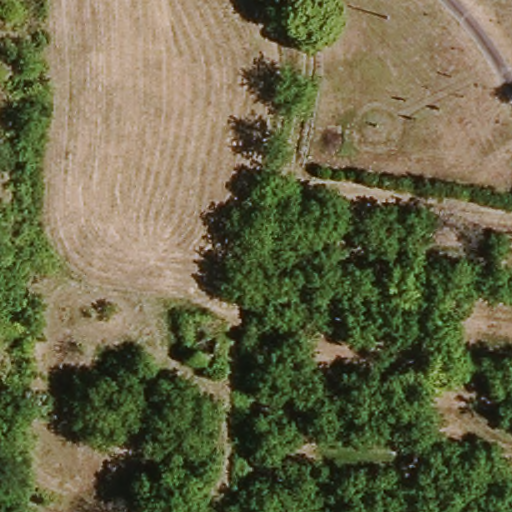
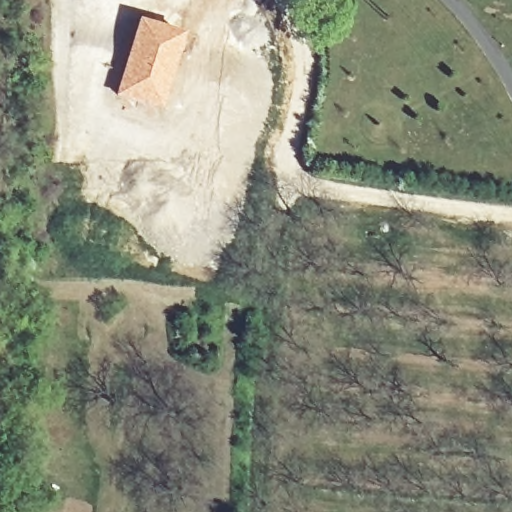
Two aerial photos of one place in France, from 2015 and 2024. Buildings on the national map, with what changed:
new [(138,18),(186,33),(162,112),(114,97),(138,18)]
demolished [(188,314),(220,320),(212,365),(181,358),(188,314)]

